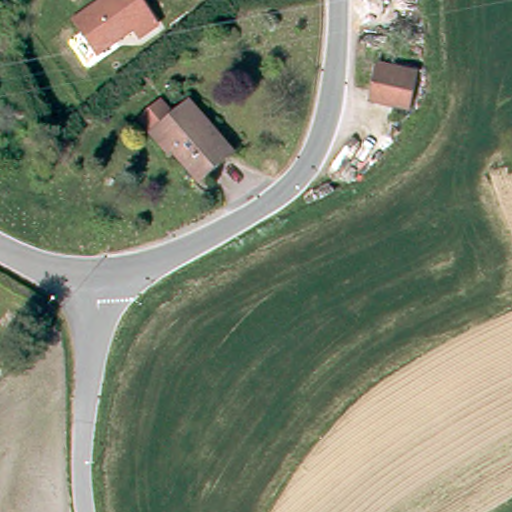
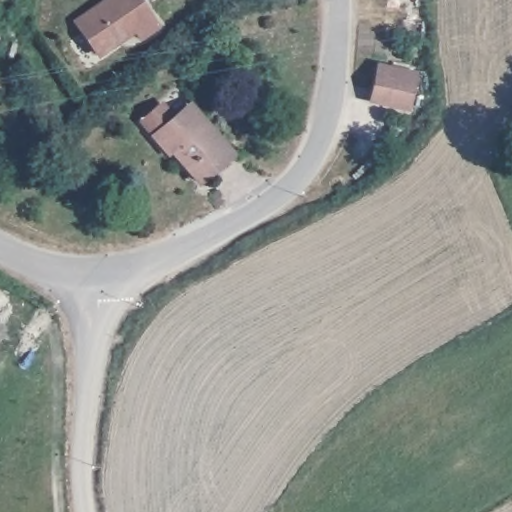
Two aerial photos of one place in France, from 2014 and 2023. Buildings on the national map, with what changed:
unchanged [(148,46),(142,38),(107,64),(84,33),(126,0),(139,0),(165,34),(148,46)]
unchanged [(412,104),(388,104),(374,103),(375,72),(375,65),(381,65),(415,65),(414,73),(412,100),(412,104)]
unchanged [(175,151),(172,154),(156,138),(157,137),(144,124),(161,108),(174,121),(180,115),(181,114),(190,106),(204,121),(205,121),(206,122),(235,154),(205,182),(175,151)]

